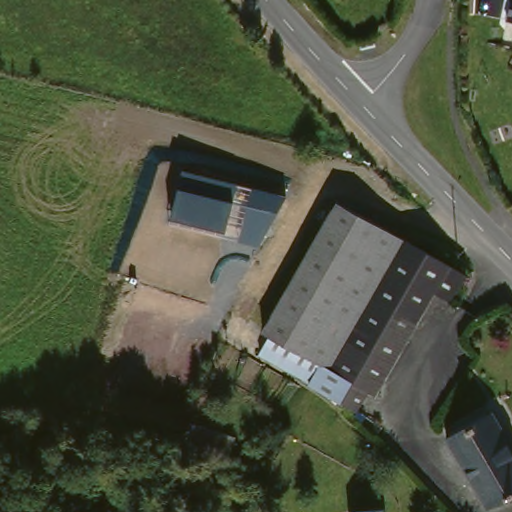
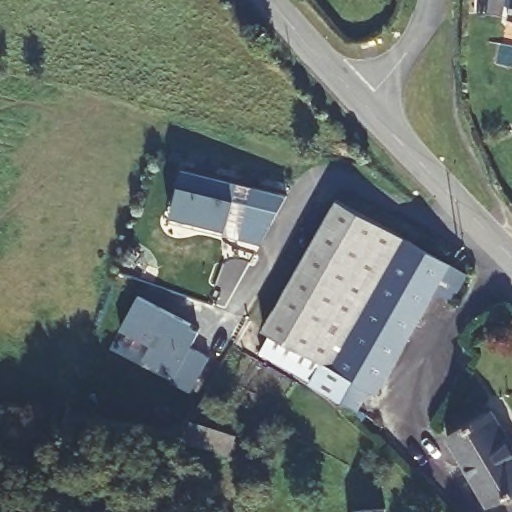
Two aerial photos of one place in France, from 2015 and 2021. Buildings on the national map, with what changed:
unchanged [(511,0),(512,0),(512,16),(508,15),(511,0)]
unchanged [(179,185),(183,168),(238,182),(233,199),(225,229),(171,215),(179,185)]
unchanged [(253,186),(287,195),(258,245),(239,240),(253,186)]
unchanged [(323,224),(343,194),(473,270),(458,292),(442,285),(383,390),(371,385),(360,404),(266,351),(275,330),(264,325),(268,316),(257,308),(310,214),(323,224)]
new [(151,345),(122,328),(139,295),(192,323),(190,326),(199,331),(190,346),(209,356),(190,393),(169,383),(174,375),(144,359),(151,345)]
unchanged [(512,423),(512,488),(496,498),(452,435),(498,402),(512,423)]
new [(190,420),(237,435),(230,455),(183,440),(190,420)]
unchanged [(385,512),(382,512),(385,511),(385,512)]

